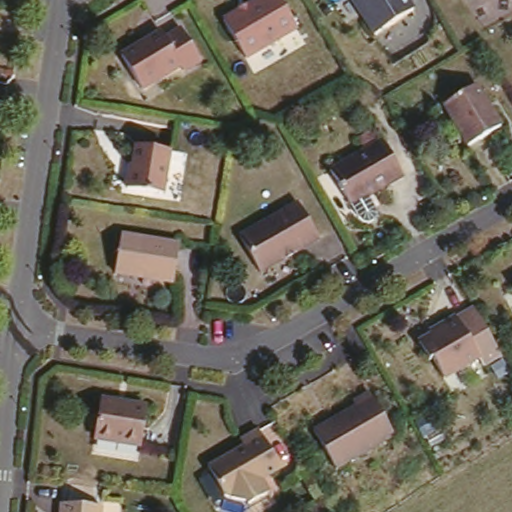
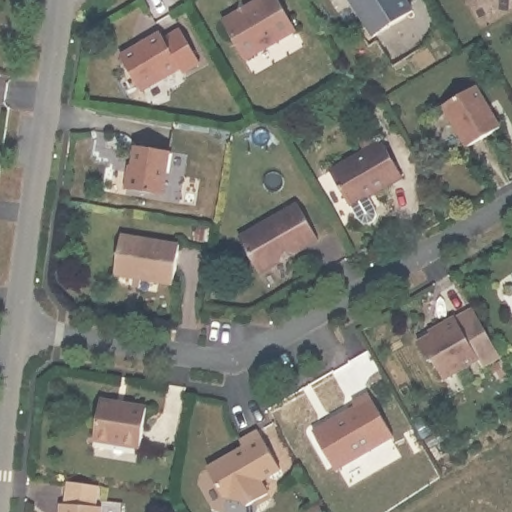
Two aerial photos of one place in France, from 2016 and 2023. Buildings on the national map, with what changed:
unchanged [(263,0),(277,0),(295,30),(248,60),(224,23),(263,0)]
unchanged [(418,15),(379,38),(366,17),(369,15),(360,0),(409,0),(418,15)]
unchanged [(159,31),(163,36),(178,27),(198,59),(182,69),(179,65),(139,89),(119,55),(159,31)]
unchanged [(476,93),(500,134),(468,154),(444,112),(476,93)]
unchanged [(356,139),(373,130),(379,142),(381,140),(405,179),(374,196),(373,194),(369,196),(377,210),(378,219),(370,224),(362,218),(354,205),(352,206),(332,169),(363,151),(356,139)]
unchanged [(165,152),(159,196),(122,191),(124,174),(128,175),(132,147),(165,152)]
unchanged [(298,200),(319,236),(260,270),(239,233),(298,200)]
unchanged [(182,242),(177,280),(120,272),(125,235),(182,242)]
unchanged [(416,340),(458,319),(474,312),(499,354),(479,364),(442,382),(416,340)]
unchanged [(144,404),(136,441),(89,432),(95,396),(144,404)]
unchanged [(372,397),(394,434),(337,468),(315,431),(372,397)]
unchanged [(218,459),(238,448),(234,441),(253,430),(274,467),(254,479),(263,493),(244,504),(241,499),(219,496),(208,476),(203,468),(218,459)]
unchanged [(102,512),(62,512),(63,504),(103,509),(102,512)]

